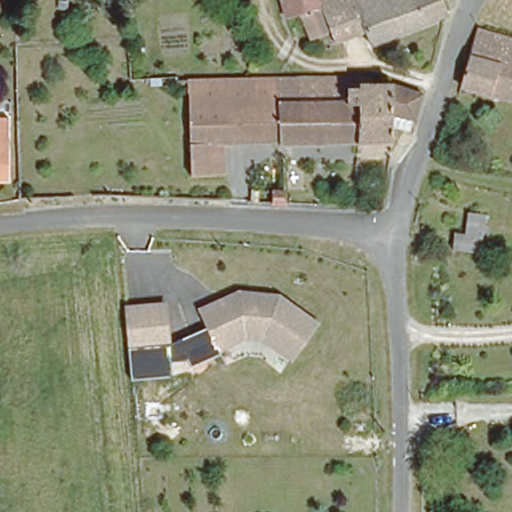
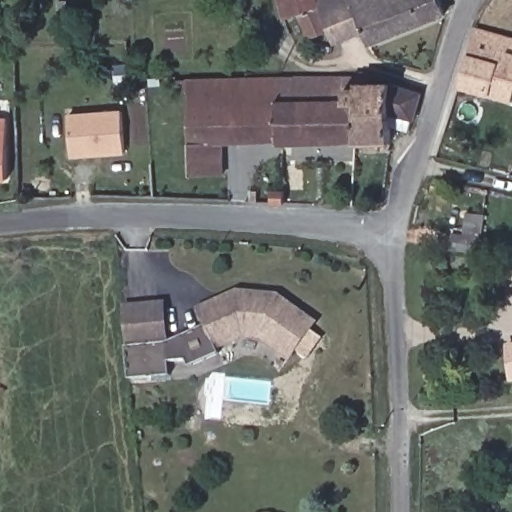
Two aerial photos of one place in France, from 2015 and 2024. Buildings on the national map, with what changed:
unchanged [(322,7),(315,9),(281,18),(277,0),(321,0),(322,7)]
unchanged [(363,34),(339,43),(334,32),(322,7),(321,0),(347,0),(363,34)]
unchanged [(370,50),(363,34),(347,0),(442,0),(449,13),(370,50)]
unchanged [(306,44),(299,27),(284,31),(281,18),(315,9),(322,7),(334,32),(306,44)]
unchanged [(257,45),(254,35),(249,36),(245,14),(261,11),(263,22),(267,42),(265,42),(257,45)]
unchanged [(458,88),(479,31),(512,41),(512,97),(510,103),(458,88)]
unchanged [(231,144),(189,143),(187,95),(174,94),(173,78),(215,79),(271,79),(287,79),(288,106),(326,109),(355,111),(355,144),(231,144)]
unchanged [(389,144),(355,144),(355,111),(326,109),(288,106),(287,79),(306,79),(359,79),(360,85),(391,87),(391,88),(392,118),(389,144)]
unchanged [(392,118),(391,88),(391,87),(426,89),(422,122),(392,118)]
new [(72,159),(69,115),(123,111),(126,155),(72,159)]
unchanged [(4,119),(7,183),(0,183),(0,119),(4,119)]
unchanged [(231,144),(230,176),(211,176),(190,176),(190,168),(189,143),(231,144)]
unchanged [(249,202),(250,190),(285,193),(285,204),(249,202)]
unchanged [(456,250),(459,233),(469,234),(474,213),(491,216),(484,256),(456,250)]
unchanged [(237,291),(279,295),(319,324),(291,363),(263,340),(245,339),(216,354),(205,327),(197,310),(237,291)]
unchanged [(166,303),(169,344),(169,348),(127,352),(123,307),(166,303)]
unchanged [(169,348),(169,344),(205,327),(216,354),(190,367),(188,360),(170,361),(171,375),(131,379),(127,352),(169,348)]
new [(506,343),(512,342),(512,379),(510,379),(506,343)]

